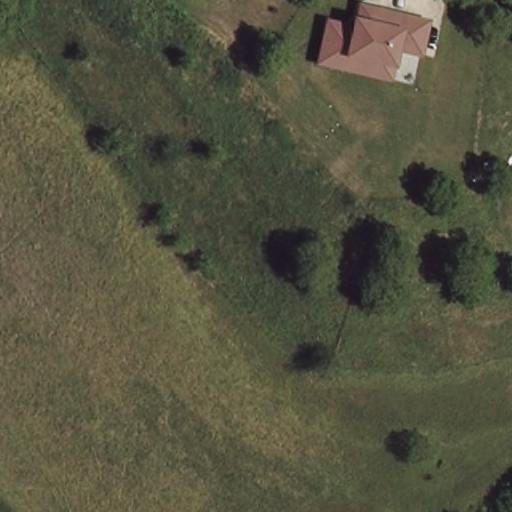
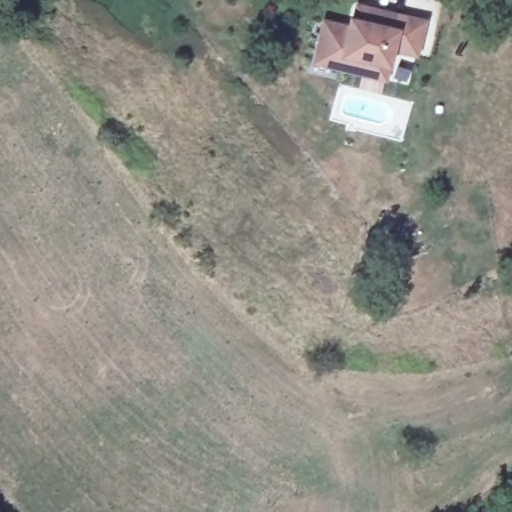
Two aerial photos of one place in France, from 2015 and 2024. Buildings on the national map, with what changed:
unchanged [(425,21),(420,57),(397,52),(393,68),(388,67),(385,83),(312,65),(323,22),(350,25),(355,5),(425,21)]

